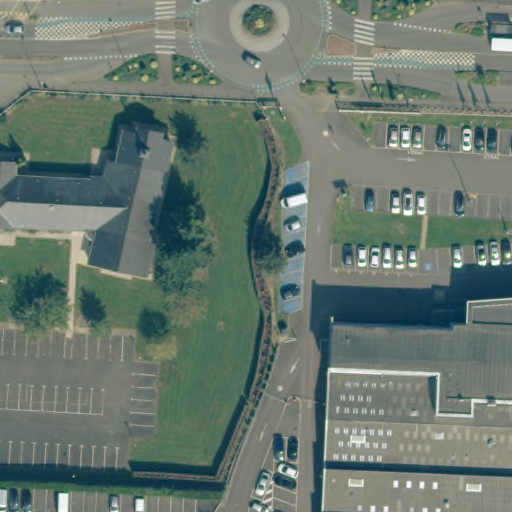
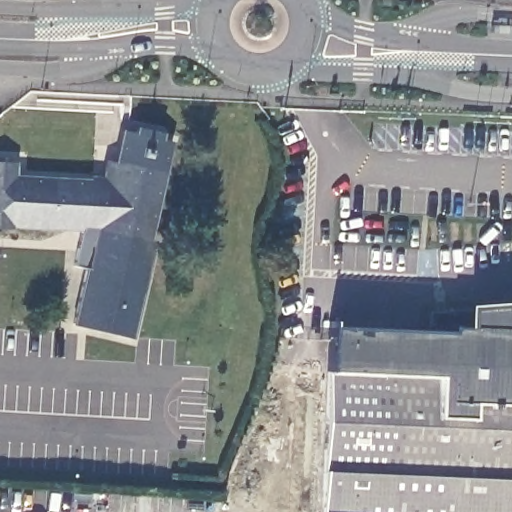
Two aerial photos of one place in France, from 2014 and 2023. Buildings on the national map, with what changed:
unchanged [(14,162),(14,166),(18,166),(19,177),(116,181),(130,130),(141,133),(142,127),(165,132),(164,138),(175,141),(151,238),(158,239),(150,273),(130,268),(129,271),(111,267),(112,264),(92,259),(97,240),(89,230),(11,224),(11,229),(0,229),(0,161),(14,162)]
new [(89,230),(97,240),(92,259),(112,264),(111,267),(129,271),(130,268),(150,273),(133,340),(73,327),(88,269),(73,265),(82,229),(89,230)]
unchanged [(334,322),(434,325),(434,307),(512,301),(512,512),(326,512),(334,322)]

